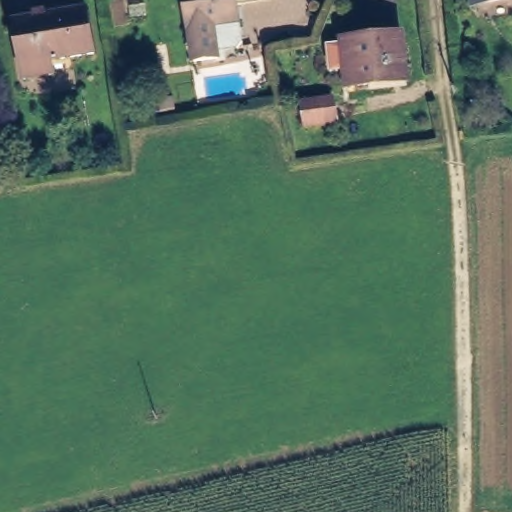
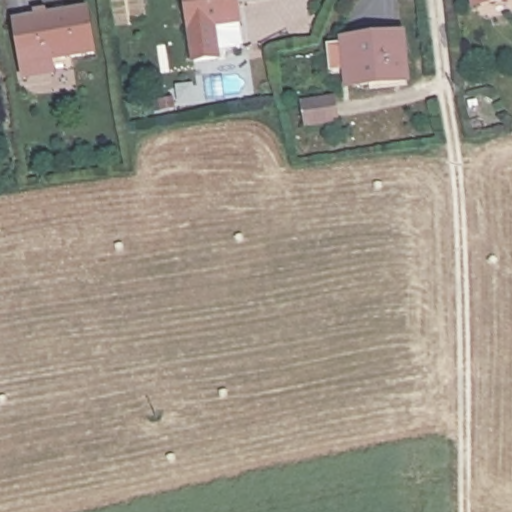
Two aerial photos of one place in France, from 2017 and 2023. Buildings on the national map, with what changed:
unchanged [(210,52),(211,60),(187,63),(180,0),(228,0),(235,49),(210,52)]
unchanged [(479,0),(488,0),(479,2),(479,0)]
unchanged [(21,82),(19,67),(13,21),(85,11),(92,56),(51,62),(53,77),(21,82)]
unchanged [(411,35),(415,79),(356,85),(355,69),(340,70),(337,45),(352,44),(352,41),(411,35)]
unchanged [(303,109),(332,104),(335,125),(307,129),(303,109)]

